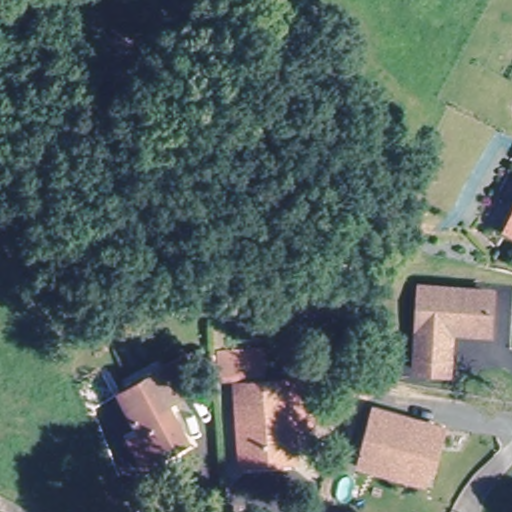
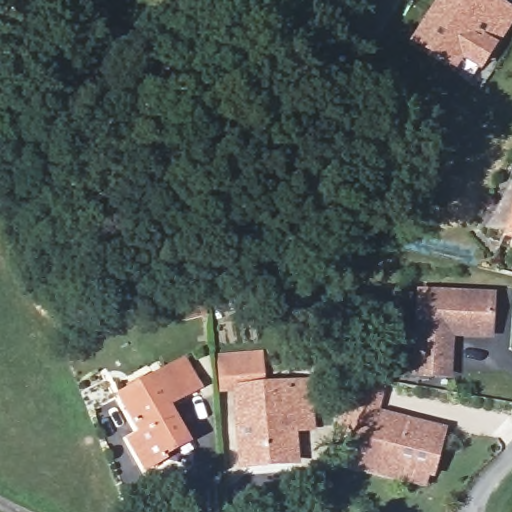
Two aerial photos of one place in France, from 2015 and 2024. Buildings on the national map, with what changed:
new [(512,10),(512,23),(497,47),(481,73),(461,61),(455,69),(410,39),(436,0),(497,0),(512,10)]
unchanged [(512,216),(512,236),(504,232),(512,216)]
unchanged [(446,332),(443,371),(411,368),(416,290),(485,296),(484,334),(446,332)]
unchanged [(259,383),(220,384),(218,356),(260,353),(259,383)]
unchanged [(193,388),(165,403),(183,439),(160,452),(164,461),(144,470),(129,438),(137,431),(120,395),(180,362),(193,388)]
unchanged [(313,431),(294,433),(294,465),(243,469),(238,392),(310,388),(313,431)]
unchanged [(433,468),(423,467),(419,482),(358,463),(375,409),(444,429),(433,468)]

